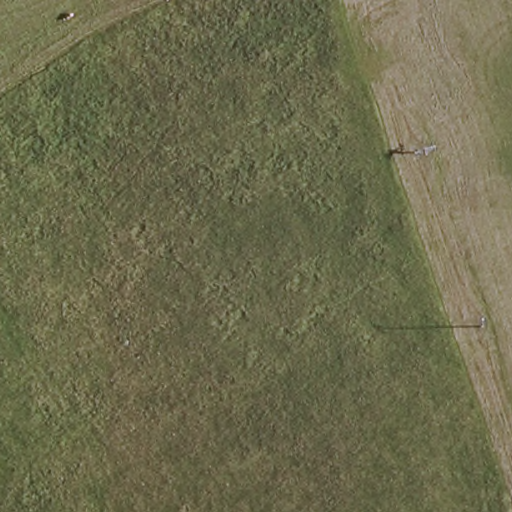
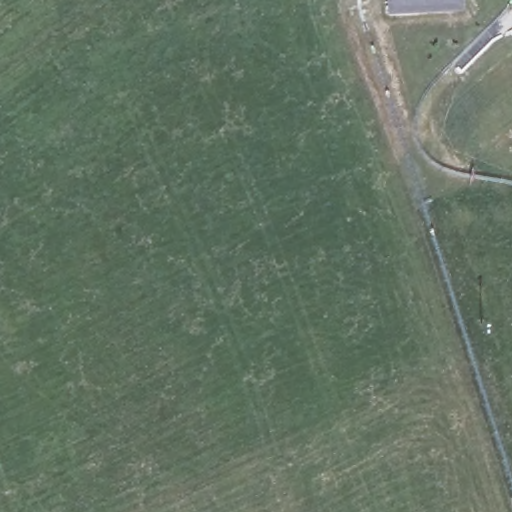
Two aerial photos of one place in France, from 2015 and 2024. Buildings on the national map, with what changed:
new [(464,10),(388,15),(387,0),(463,0),(464,10)]

